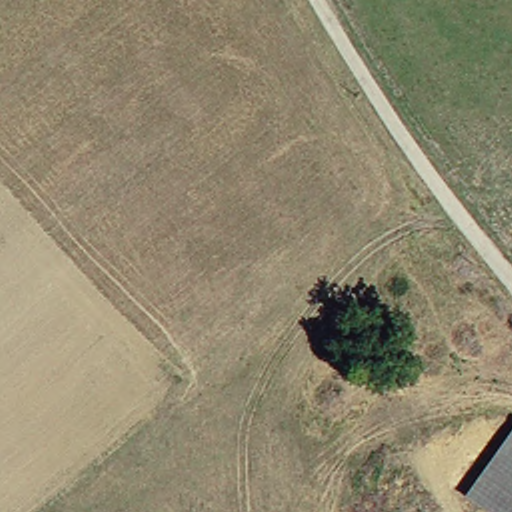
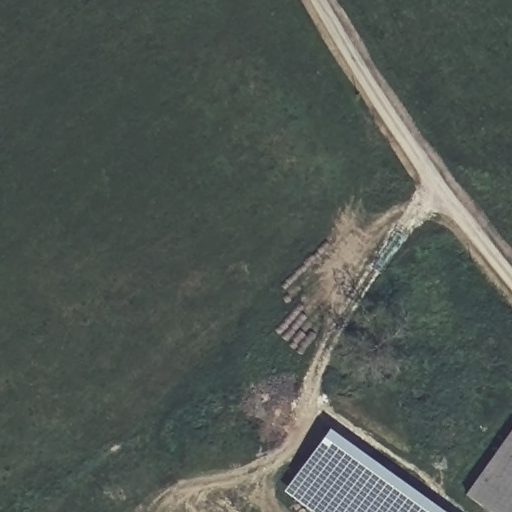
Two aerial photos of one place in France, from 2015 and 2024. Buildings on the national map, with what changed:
new [(280,491),(326,428),(441,512),(309,512),(280,491)]
unchanged [(512,435),(512,512),(486,512),(465,497),(512,435)]

